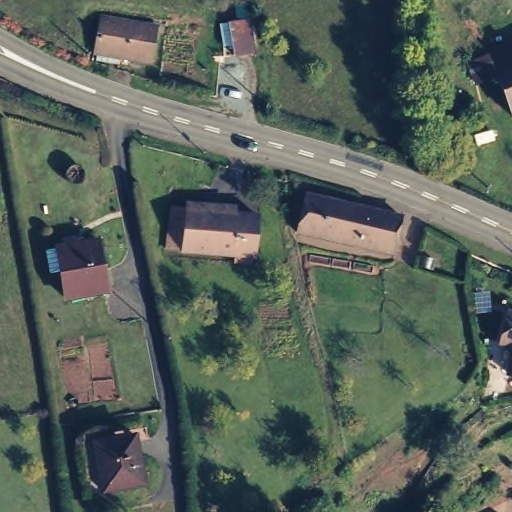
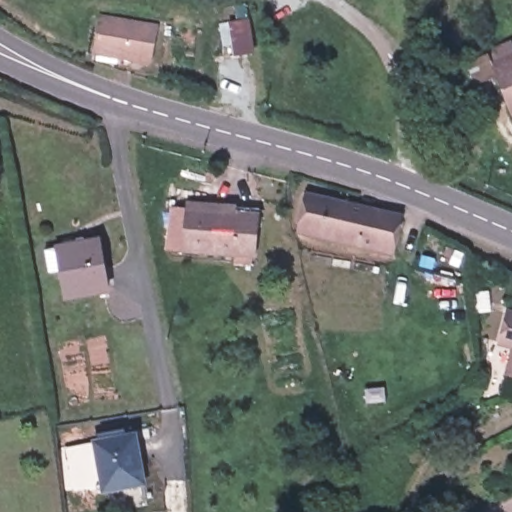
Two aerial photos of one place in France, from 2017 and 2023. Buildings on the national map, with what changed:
unchanged [(101,15),(158,20),(155,52),(120,49),(119,57),(97,54),(101,15)]
unchanged [(227,19),(246,21),(242,55),(222,52),(227,19)]
unchanged [(472,82),(460,57),(509,33),(512,39),(512,116),(494,74),(472,82)]
unchanged [(294,224),(304,188),(400,216),(389,251),(382,249),(294,224)]
unchanged [(227,212),(229,205),(238,208),(236,214),(259,220),(250,259),(162,240),(175,197),(227,212)]
unchanged [(105,286),(63,296),(55,246),(95,236),(105,286)]
unchanged [(512,309),(512,373),(500,370),(508,343),(492,339),(502,306),(512,309)]
unchanged [(136,482),(94,489),(86,439),(105,436),(105,429),(115,427),(116,435),(127,433),(136,482)]

